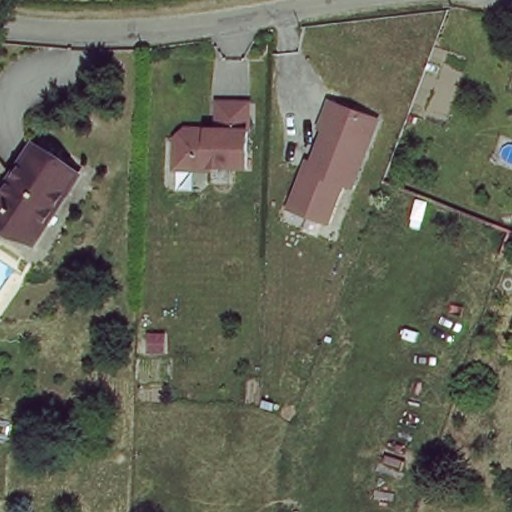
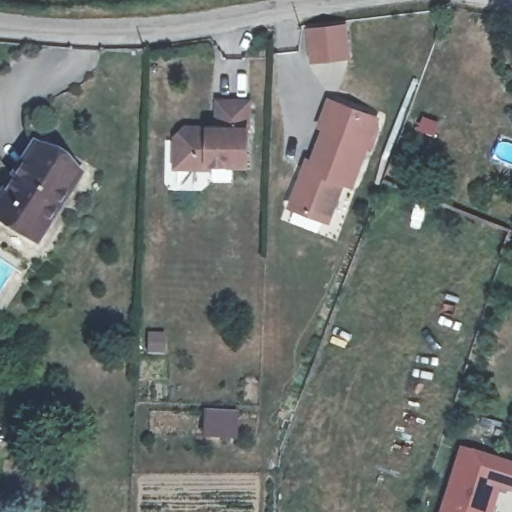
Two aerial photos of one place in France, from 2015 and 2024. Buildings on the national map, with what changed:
new [(306,29),(347,24),(350,61),(309,64),(306,29)]
unchanged [(356,186),(343,185),(330,222),(286,207),(329,100),(380,118),(356,186)]
unchanged [(177,141),(186,132),(211,131),(211,135),(219,135),(219,104),(249,103),(250,166),(210,167),(210,155),(202,156),(198,160),(198,171),(178,171),(177,141)]
unchanged [(81,170),(34,239),(0,216),(0,195),(38,140),(81,170)]
new [(491,512),(439,512),(459,447),(469,451),(512,464),(512,482),(509,493),(499,489),(491,512)]

